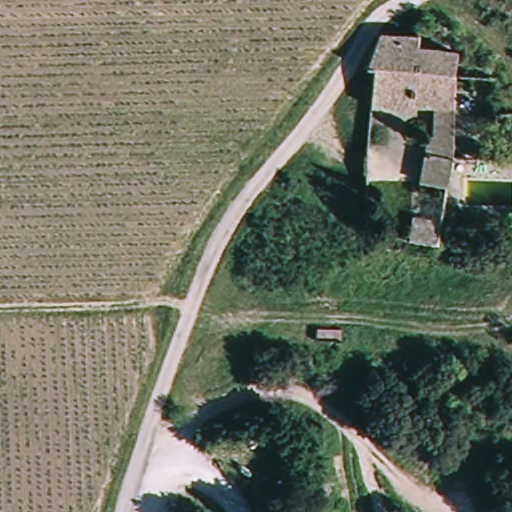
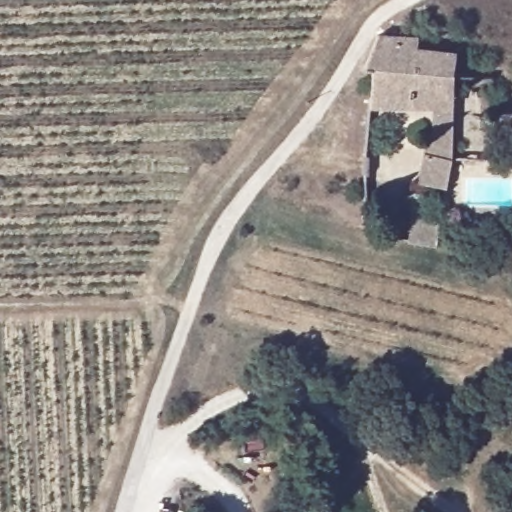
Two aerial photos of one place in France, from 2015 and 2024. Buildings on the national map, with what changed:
unchanged [(418,30),(417,41),(456,46),(453,102),(451,152),(446,181),(419,177),(425,146),(429,130),(433,130),(434,100),(370,100),(373,64),(365,63),(365,60),(378,29),(418,30)]
unchanged [(440,220),(436,244),(407,240),(411,215),(440,220)]

